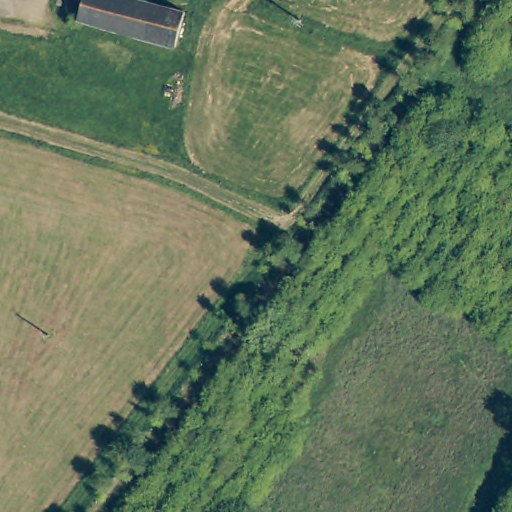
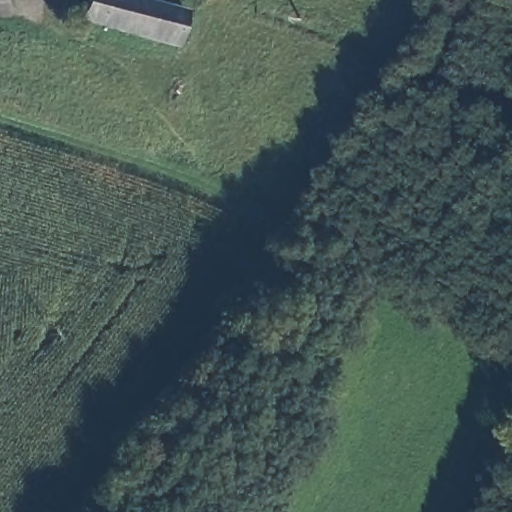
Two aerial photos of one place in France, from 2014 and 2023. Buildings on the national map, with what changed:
unchanged [(175,46),(79,19),(80,14),(67,11),(70,0),(141,0),(184,11),(175,46)]

